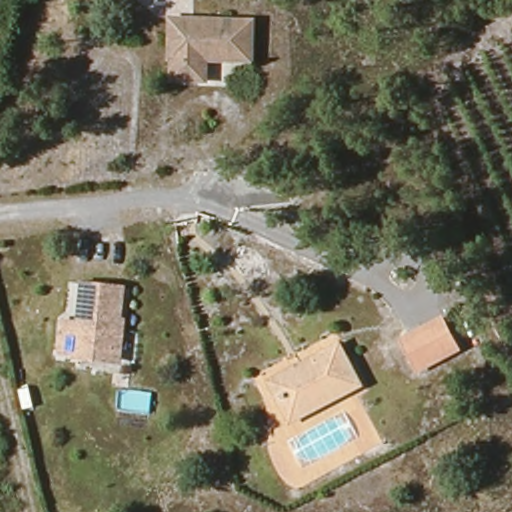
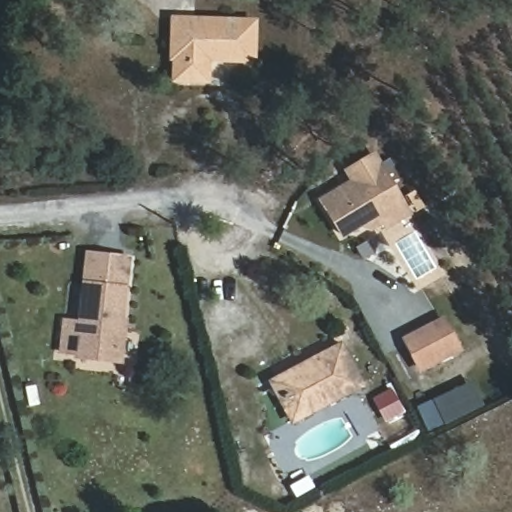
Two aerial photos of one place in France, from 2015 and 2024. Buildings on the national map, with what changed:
unchanged [(179,64),(174,64),(168,27),(245,17),(251,54),(208,59),(211,75),(211,79),(182,84),(181,79),(179,64)]
new [(381,224),(365,233),(362,227),(340,239),(317,198),(348,180),(343,169),(376,151),(411,214),(383,230),(381,224)]
unchanged [(63,354),(64,349),(66,324),(81,326),(86,282),(126,286),(119,349),(118,359),(63,354)]
unchanged [(418,373),(402,344),(442,322),(457,351),(418,373)]
unchanged [(270,383),(302,364),(337,345),(360,386),(297,421),(292,423),(270,383)]
new [(416,409),(472,381),(483,405),(428,433),(416,409)]

